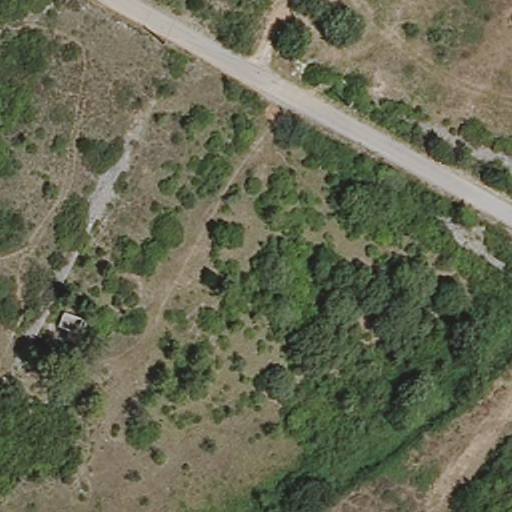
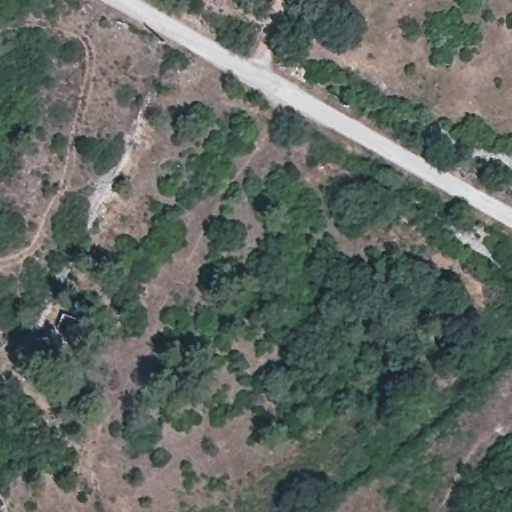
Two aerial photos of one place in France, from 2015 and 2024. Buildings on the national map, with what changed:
unchanged [(82,320),(75,338),(56,331),(63,312),(82,320)]

